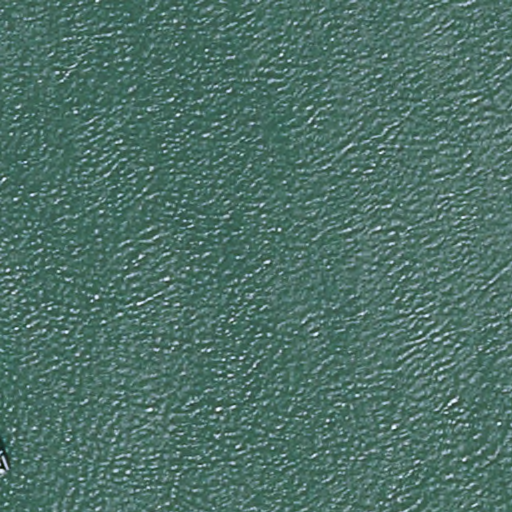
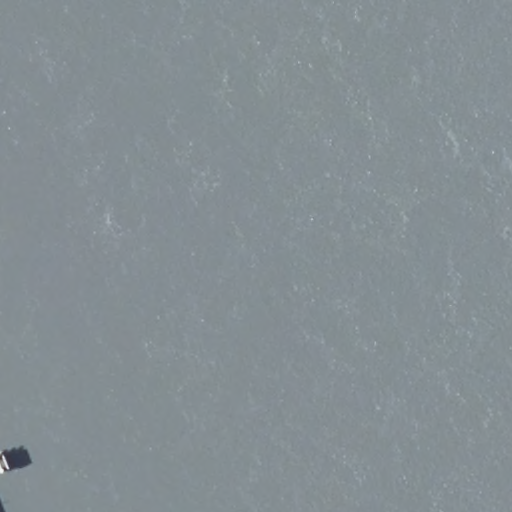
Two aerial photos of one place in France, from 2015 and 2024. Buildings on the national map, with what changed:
[]

